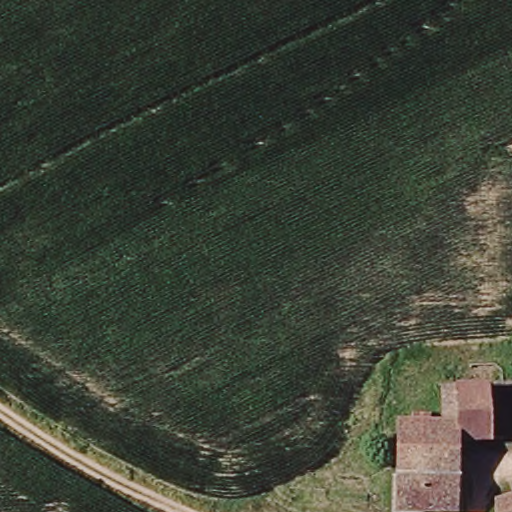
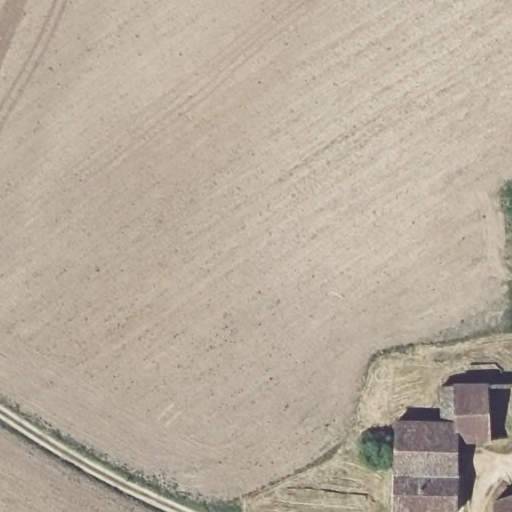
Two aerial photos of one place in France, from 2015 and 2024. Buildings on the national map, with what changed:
unchanged [(443,384),(492,384),(492,435),(457,434),(457,419),(443,419),(443,384)]
unchanged [(455,470),(394,469),(394,419),(443,419),(457,419),(457,434),(455,470)]
unchanged [(455,508),(394,507),(394,469),(455,470),(455,508)]
unchanged [(486,499),(512,491),(512,512),(489,512),(486,499)]

